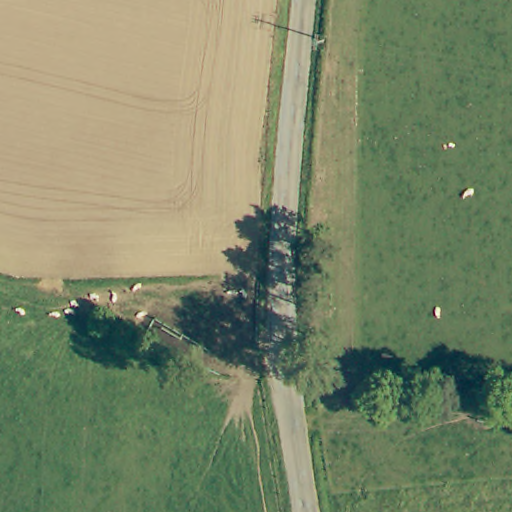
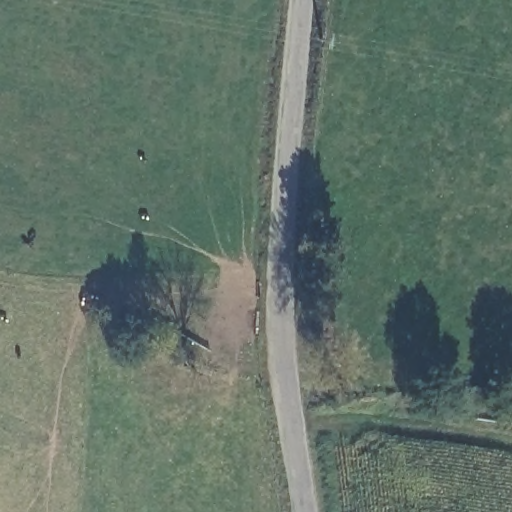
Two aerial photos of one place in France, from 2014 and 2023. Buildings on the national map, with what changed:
[]

